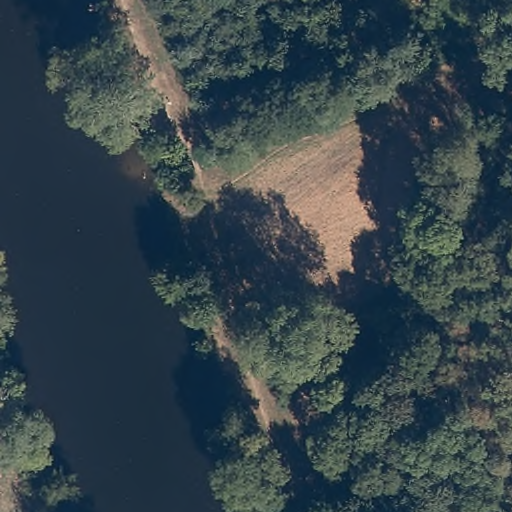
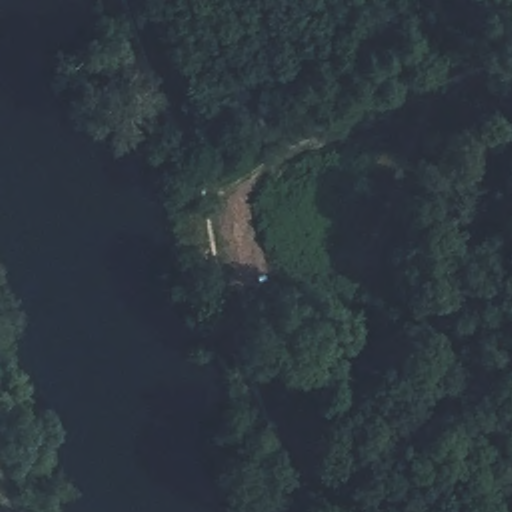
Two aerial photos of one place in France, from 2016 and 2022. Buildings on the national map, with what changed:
unchanged [(424,340),(398,345),(394,325),(420,320),(424,340)]

